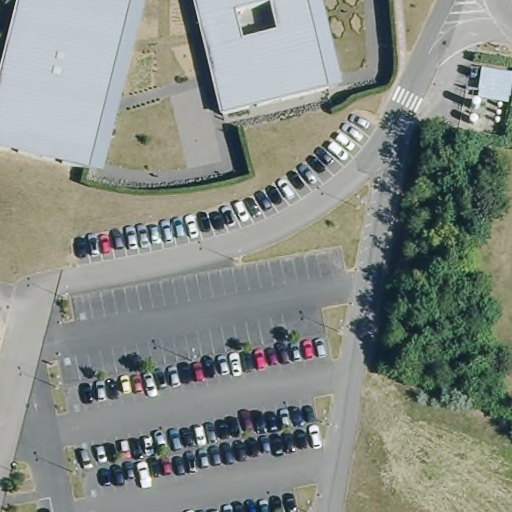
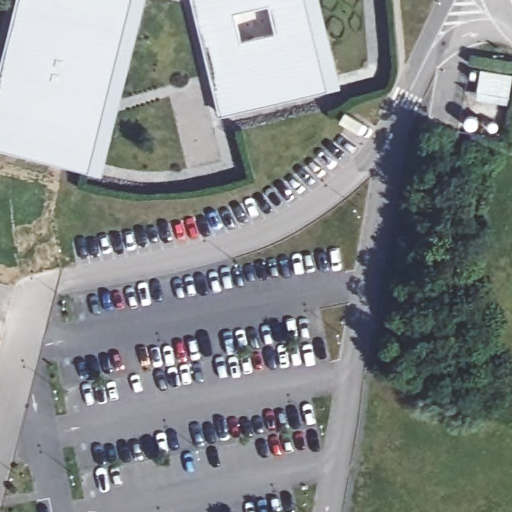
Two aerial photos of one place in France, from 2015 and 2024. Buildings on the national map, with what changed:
unchanged [(94,175),(0,150),(0,111),(32,0),(145,0),(94,175)]
unchanged [(345,86),(238,112),(210,0),(324,0),(345,86)]
unchanged [(512,75),(512,78),(507,105),(476,101),(476,93),(464,91),(470,70),(512,75)]

